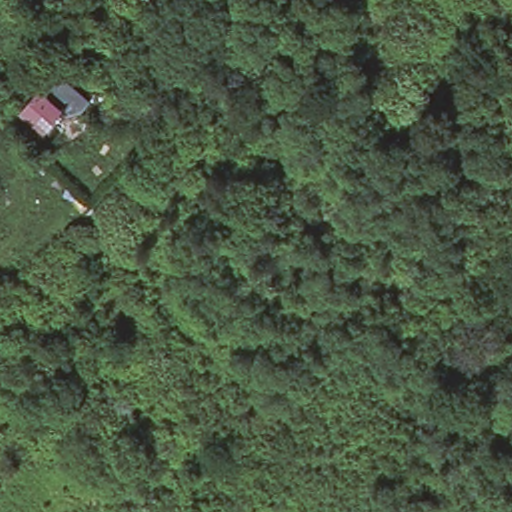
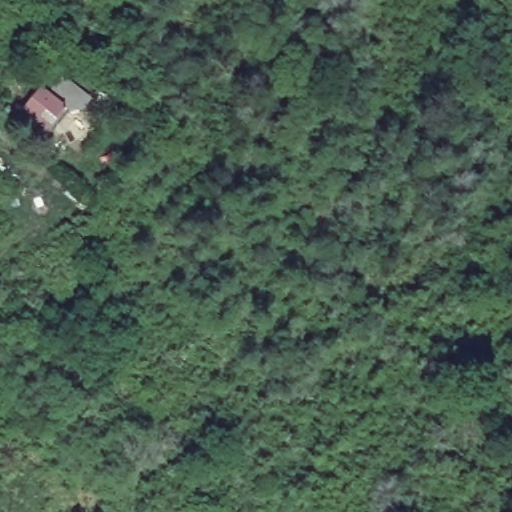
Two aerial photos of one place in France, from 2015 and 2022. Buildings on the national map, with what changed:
unchanged [(19,106),(36,82),(65,102),(48,131),(19,106)]

